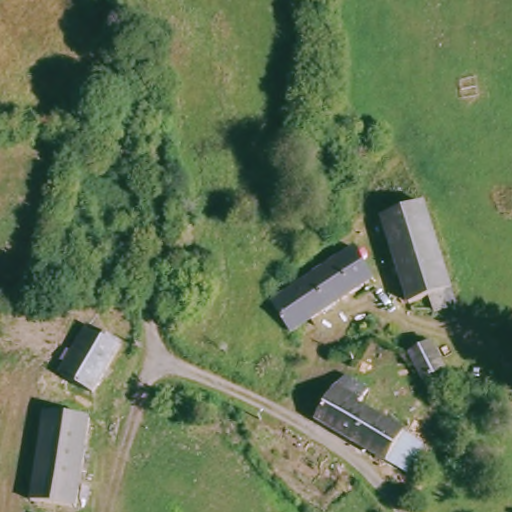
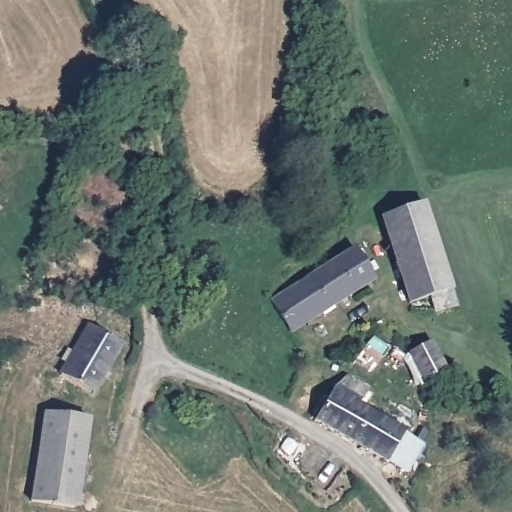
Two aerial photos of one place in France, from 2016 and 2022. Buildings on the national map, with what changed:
unchanged [(462,304),(440,305),(438,294),(418,300),(388,213),(428,202),(462,304)]
unchanged [(280,293),(297,281),(356,246),(373,277),(296,325),(280,293)]
unchanged [(66,374),(90,325),(126,345),(98,392),(66,374)]
unchanged [(432,376),(427,377),(415,351),(434,338),(447,364),(443,367),(448,378),(454,376),(464,399),(441,398),(432,376)]
unchanged [(416,473),(390,460),(319,418),(339,386),(356,377),(372,387),(363,401),(408,426),(431,442),(416,473)]
unchanged [(78,505),(38,497),(51,407),(95,415),(78,505)]

